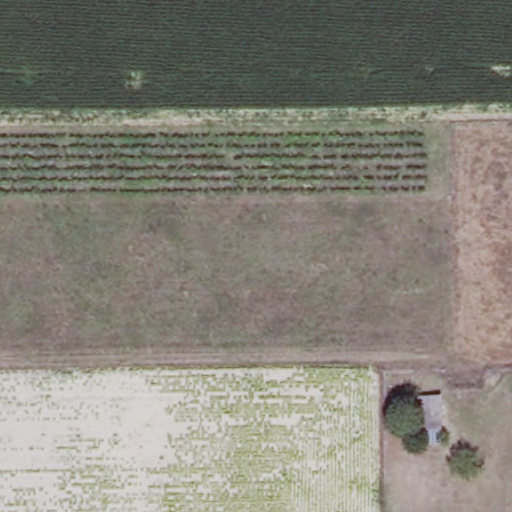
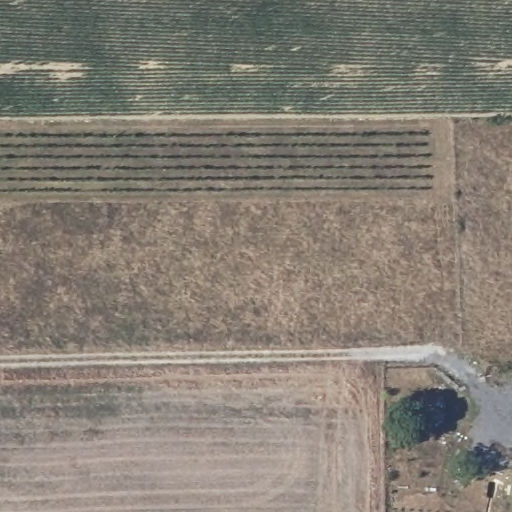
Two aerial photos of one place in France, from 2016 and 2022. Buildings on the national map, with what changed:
unchanged [(443,444),(421,444),(418,396),(445,393),(443,444)]

